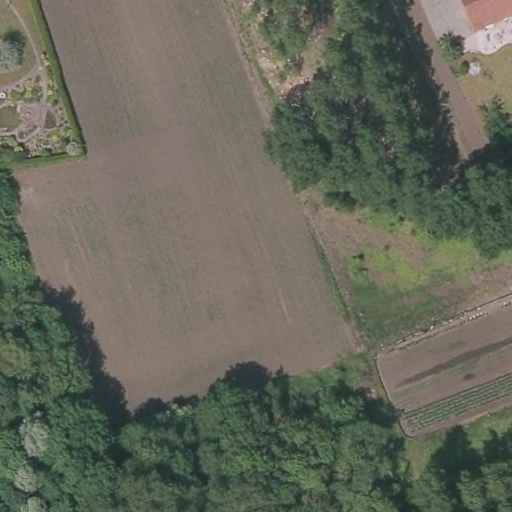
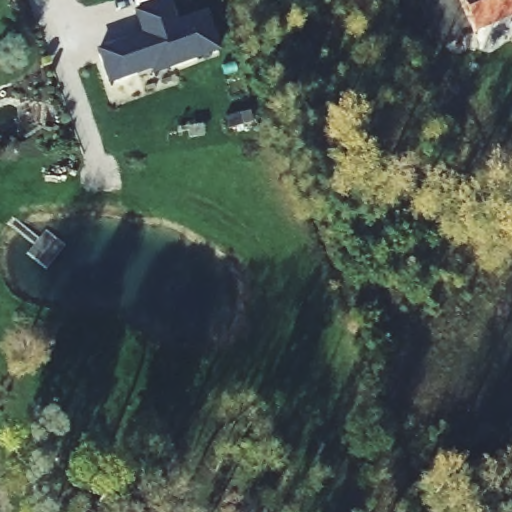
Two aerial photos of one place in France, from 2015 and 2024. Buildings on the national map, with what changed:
new [(167,0),(175,21),(204,11),(217,49),(152,70),(150,65),(107,79),(97,48),(113,42),(120,45),(128,43),(132,36),(142,33),(135,9),(162,0),(167,0)]
unchanged [(455,0),(512,0),(512,19),(471,36),(455,0)]

